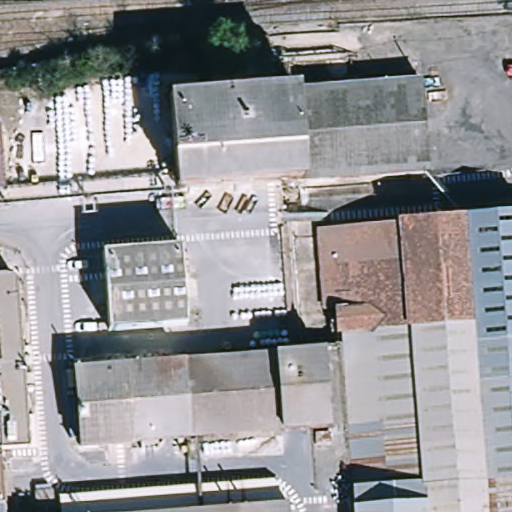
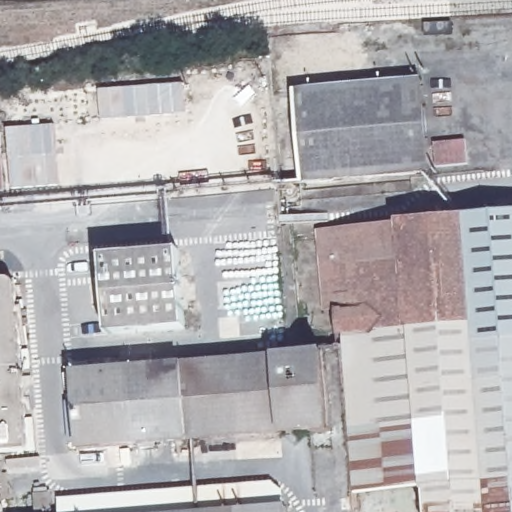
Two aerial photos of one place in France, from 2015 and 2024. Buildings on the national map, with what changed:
demolished [(495,33),(512,32),(512,71),(498,73),(495,33)]
unchanged [(413,81),(418,175),(307,182),(299,89),(413,81)]
demolished [(299,89),(307,182),(175,190),(169,97),(299,89)]
new [(54,124),(60,185),(10,189),(6,129),(54,124)]
unchanged [(0,189),(0,142),(3,189),(0,189)]
unchanged [(353,512),(328,224),(512,211),(512,512),(353,512)]
unchanged [(109,334),(103,257),(180,251),(187,329),(109,334)]
unchanged [(0,452),(0,279),(22,277),(35,449),(0,452)]
unchanged [(79,446),(75,366),(319,352),(322,431),(79,446)]
unchanged [(0,512),(0,485),(2,512),(0,512)]
unchanged [(289,512),(270,512),(288,511),(289,512)]

